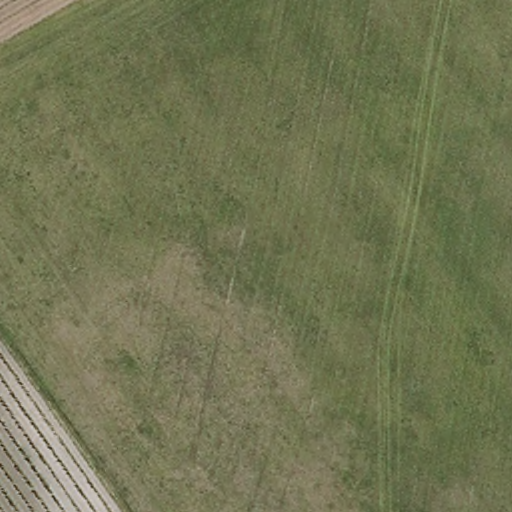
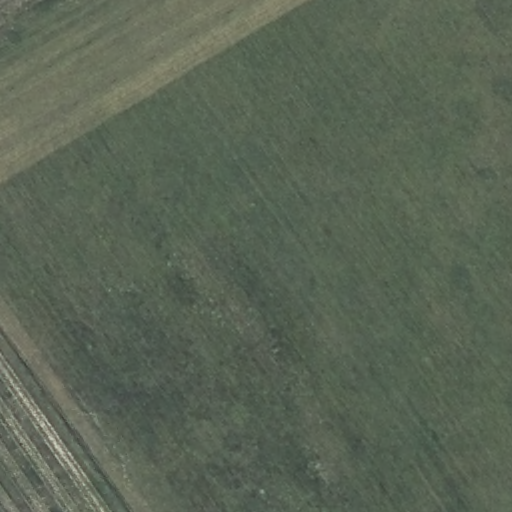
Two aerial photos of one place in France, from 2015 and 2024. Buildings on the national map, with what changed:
[]

